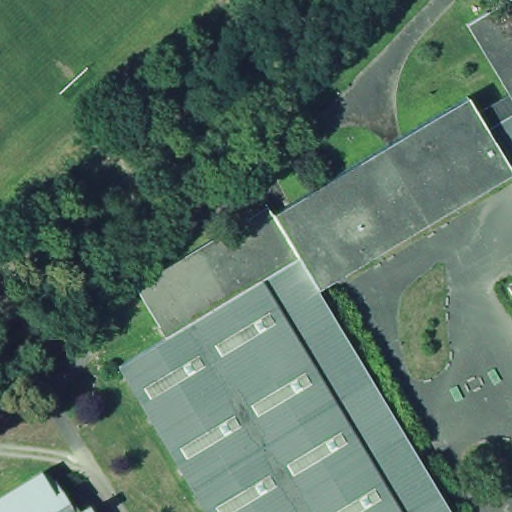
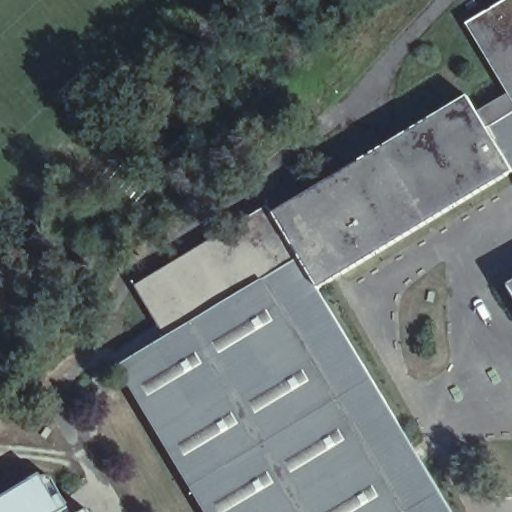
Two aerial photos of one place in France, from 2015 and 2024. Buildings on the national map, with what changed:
unchanged [(160,324),(129,271),(264,192),(270,202),(467,86),(477,103),(507,86),(466,16),(494,0),(512,0),(512,168),(317,281),(450,512),(208,512),(114,353),(160,324)]
unchanged [(512,280),(512,291),(507,282),(512,280)]
unchanged [(0,512),(0,499),(47,469),(79,512),(0,512)]
unchanged [(93,512),(89,512),(92,510),(93,512)]

